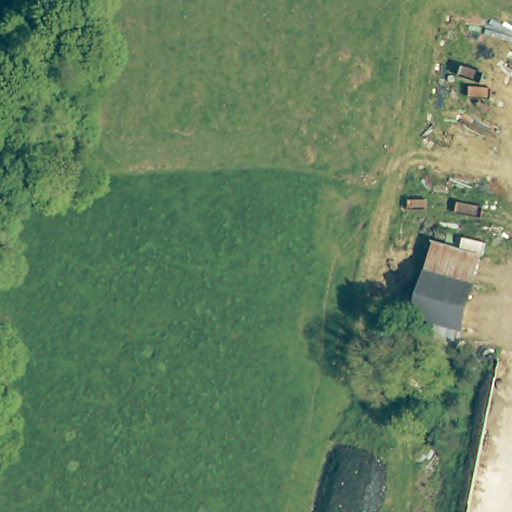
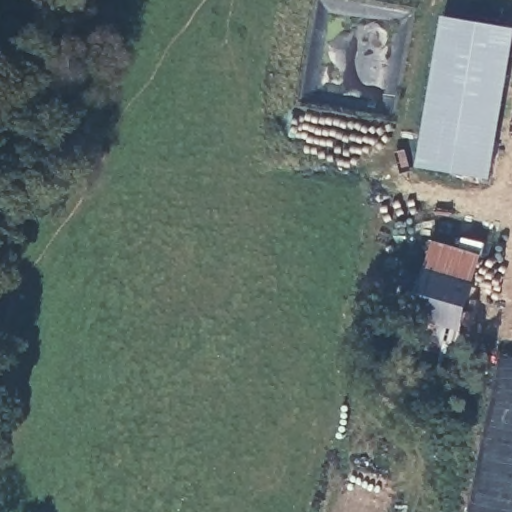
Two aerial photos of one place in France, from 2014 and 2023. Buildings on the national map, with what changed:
new [(512,57),(489,181),(418,169),(444,17),(512,29),(512,57)]
unchanged [(482,286),(468,333),(458,362),(404,350),(411,319),(423,271),(482,286)]

